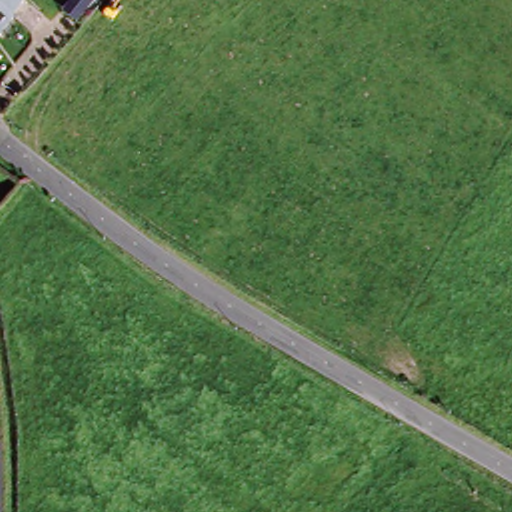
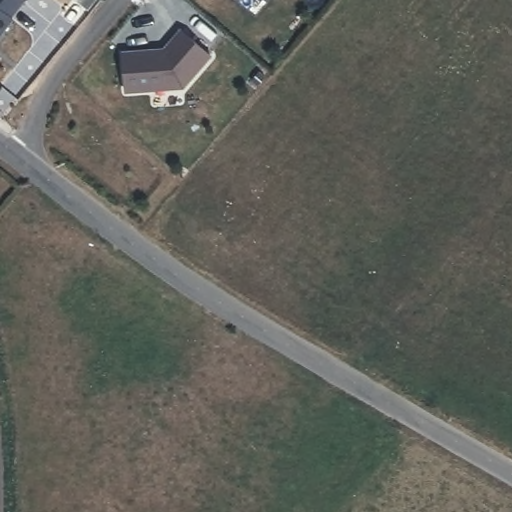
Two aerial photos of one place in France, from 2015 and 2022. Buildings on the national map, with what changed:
unchanged [(10,20),(12,22),(0,38),(0,0),(20,0),(23,3),(10,20)]
unchanged [(81,0),(96,0),(101,4),(92,16),(77,4),(81,0)]
new [(161,56),(162,59),(168,59),(187,36),(217,61),(190,93),(133,98),(130,59),(161,56)]

